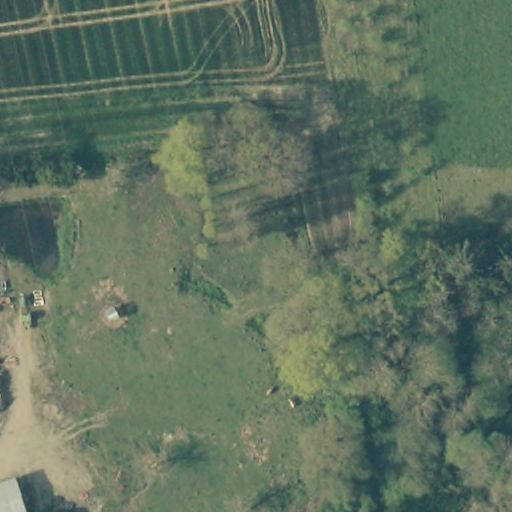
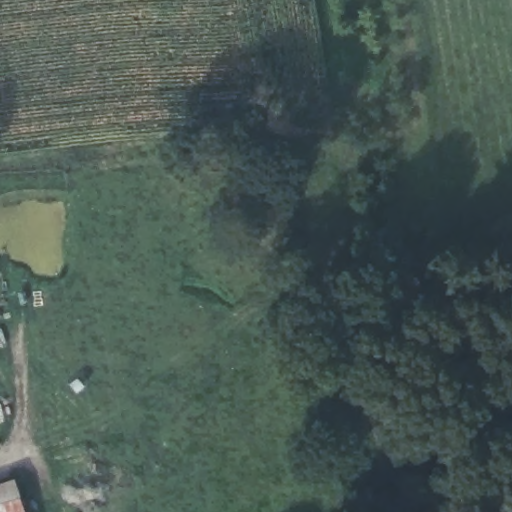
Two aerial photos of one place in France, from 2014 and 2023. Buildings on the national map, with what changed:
unchanged [(20,474),(31,512),(0,512),(0,481),(20,474)]

